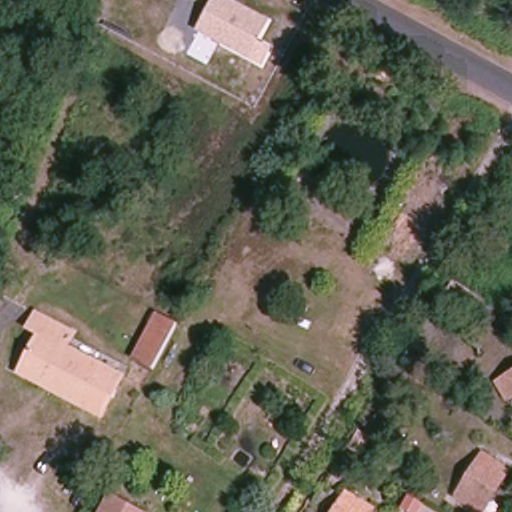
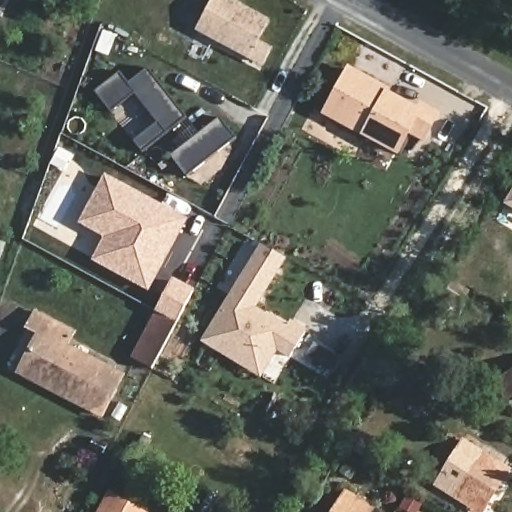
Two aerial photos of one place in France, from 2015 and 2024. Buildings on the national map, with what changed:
unchanged [(260,39),(272,47),(262,65),(195,29),(211,0),(231,0),(270,20),(260,39)]
new [(122,71),(130,82),(150,67),(188,118),(142,152),(132,140),(157,122),(135,94),(111,112),(95,90),(122,71)]
new [(421,101),(442,112),(425,144),(410,136),(399,157),(322,115),(347,67),(418,105),(421,101)]
new [(185,175),(171,156),(221,117),(235,137),(185,175)]
new [(149,292),(92,262),(104,239),(76,226),(106,175),(189,220),(149,292)]
new [(512,198),(512,208),(507,206),(512,198)]
new [(261,380),(201,343),(261,245),(287,260),(258,308),(287,326),(292,319),(308,329),(288,361),(277,355),(261,380)]
unchanged [(20,363),(37,330),(26,326),(37,311),(71,329),(62,345),(118,373),(98,415),(49,390),(16,372),(20,363)]
unchanged [(151,367),(130,357),(154,312),(175,323),(151,367)]
unchanged [(493,385),(512,374),(512,397),(502,402),(493,385)]
unchanged [(472,506),(456,497),(482,455),(507,468),(489,498),(482,512),(472,506)]
unchanged [(374,507),(371,512),(333,512),(347,490),(374,507)]
unchanged [(140,512),(105,512),(114,498),(140,512)]

